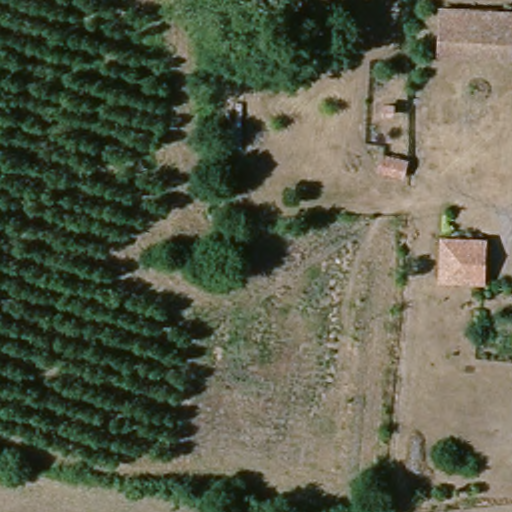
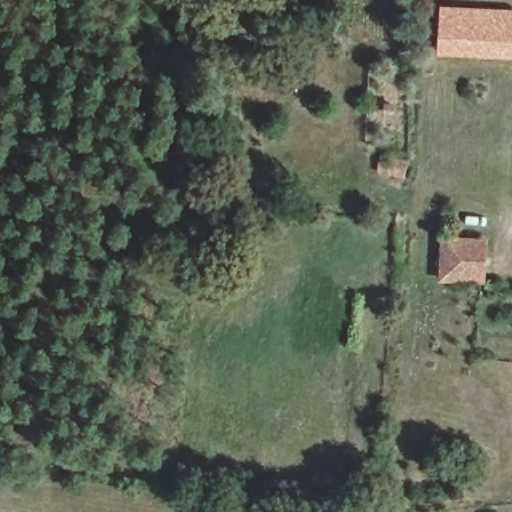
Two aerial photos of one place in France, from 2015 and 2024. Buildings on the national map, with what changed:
unchanged [(429,53),(431,11),(446,11),(512,14),(512,55),(445,54),(429,53)]
unchanged [(415,178),(391,174),(396,159),(417,163),(415,178)]
unchanged [(482,280),(441,277),(444,238),(484,241),(482,280)]

